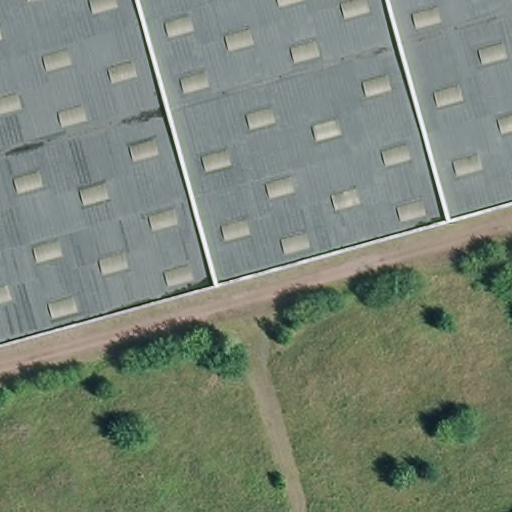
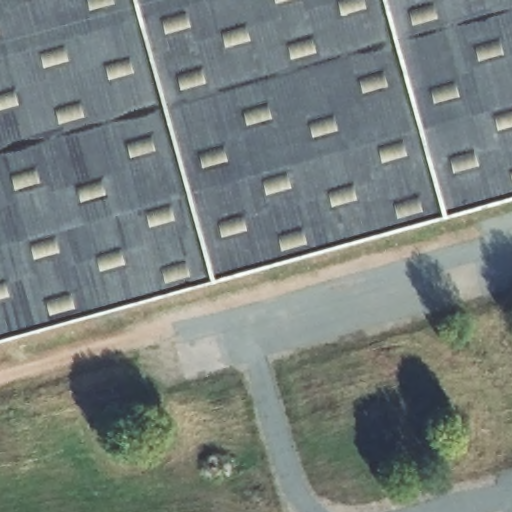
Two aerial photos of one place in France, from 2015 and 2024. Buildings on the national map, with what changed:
unchanged [(0,347),(0,0),(512,0),(512,207),(407,235),(0,347)]

